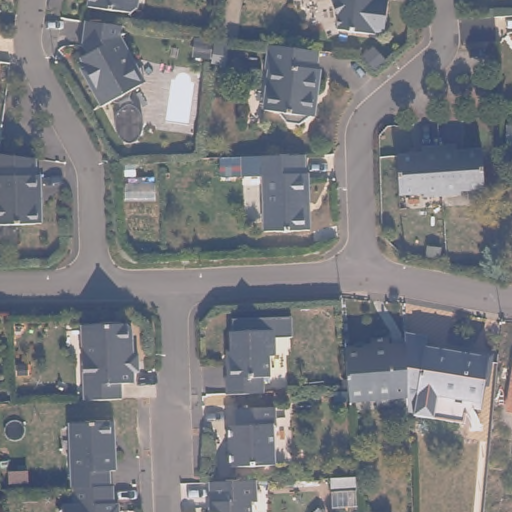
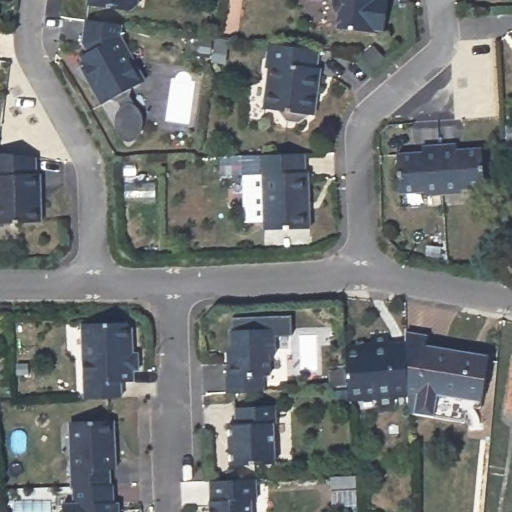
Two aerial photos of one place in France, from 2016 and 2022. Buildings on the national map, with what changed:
unchanged [(127,4),(97,0),(132,0),(127,4)]
unchanged [(387,29),(380,28),(379,31),(340,26),(342,14),(336,0),(390,0),(387,29)]
unchanged [(137,77),(131,81),(129,89),(116,96),(108,94),(98,97),(89,76),(92,74),(80,50),(87,46),(82,37),(85,14),(121,18),(120,29),(130,49),(143,74),(137,77)]
unchanged [(324,54),(326,55),(323,82),(320,82),(318,101),(307,110),(291,109),(284,97),(271,95),(280,32),(326,38),(324,54)]
unchanged [(425,144),(426,137),(461,135),(461,140),(487,139),(489,177),(466,179),(466,183),(428,185),(428,181),(403,182),(401,145),(425,144)]
unchanged [(45,216),(1,218),(0,203),(0,147),(2,147),(34,152),(38,152),(39,169),(43,170),(43,184),(44,201),(45,216)]
unchanged [(310,169),(313,170),(315,225),(269,227),(267,172),(265,172),(263,154),(309,152),(310,169)]
unchanged [(83,317),(89,317),(128,315),(133,320),(134,331),(128,337),(129,347),(139,347),(140,363),(129,364),(129,375),(122,376),(122,392),(97,392),(86,392),(84,346),(83,317)]
unchanged [(278,321),(278,346),(272,346),(273,367),(266,368),(266,384),(229,385),(228,368),(230,368),(229,356),(233,352),(232,323),(278,321)]
unchanged [(408,389),(407,363),(406,330),(429,335),(427,346),(488,357),(480,402),(440,395),(437,415),(414,413),(416,390),(408,389)]
unchanged [(362,351),(362,334),(390,334),(391,363),(407,363),(408,389),(408,392),(393,392),(393,406),(377,406),(377,391),(352,392),(348,392),(348,391),(346,351),(350,351),(362,351)]
unchanged [(281,398),(282,416),(279,417),(280,455),(237,457),(235,417),(242,417),(243,400),(281,398)]
unchanged [(82,480),(80,480),(79,450),(85,444),(84,415),(124,414),(124,430),(122,430),(122,443),(125,442),(125,463),(119,463),(120,478),(115,478),(84,480),(82,480)]
unchanged [(213,495),(213,477),(222,477),(257,476),(257,497),(253,498),(253,512),(211,512),(211,496),(213,495)]
unchanged [(352,476),(353,490),(326,491),(325,478),(352,476)]
unchanged [(115,478),(120,478),(122,478),(122,496),(125,496),(125,498),(127,498),(128,512),(71,512),(71,498),(82,498),(82,480),(84,480),(115,478)]

